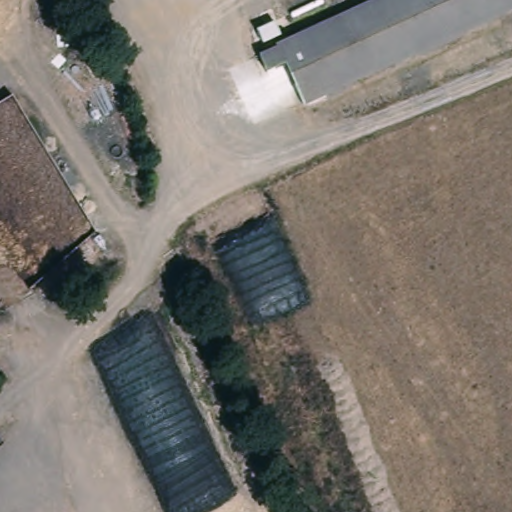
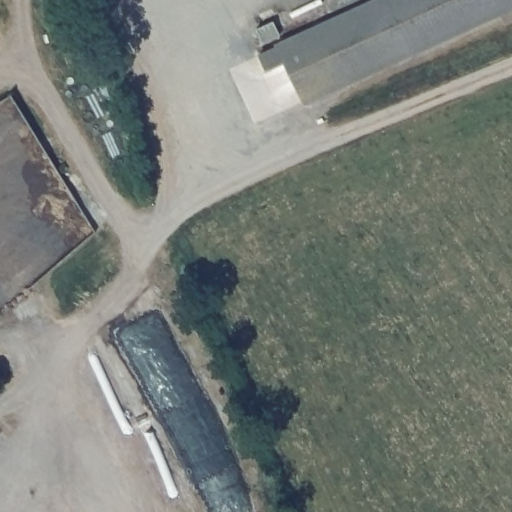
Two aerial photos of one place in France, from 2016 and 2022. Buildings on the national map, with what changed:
unchanged [(260,29),(287,15),(296,31),(365,0),(512,0),(512,16),(308,109),(289,63),(269,72),(262,54),(272,48),(260,29)]

